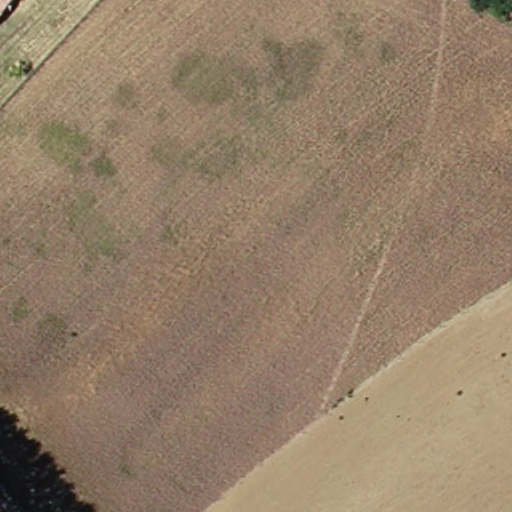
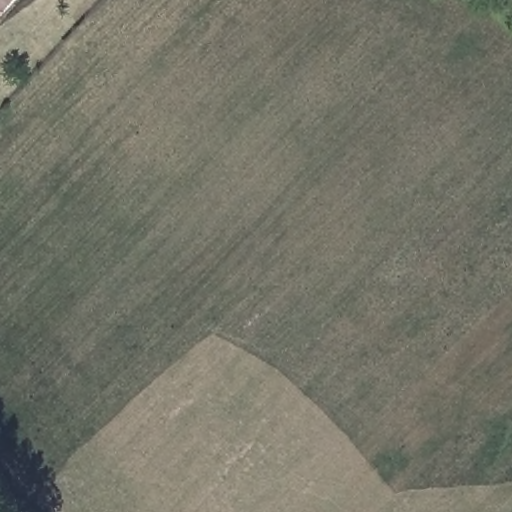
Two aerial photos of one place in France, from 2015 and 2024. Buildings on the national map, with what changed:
unchanged [(0,0),(13,0),(0,13),(0,0)]

